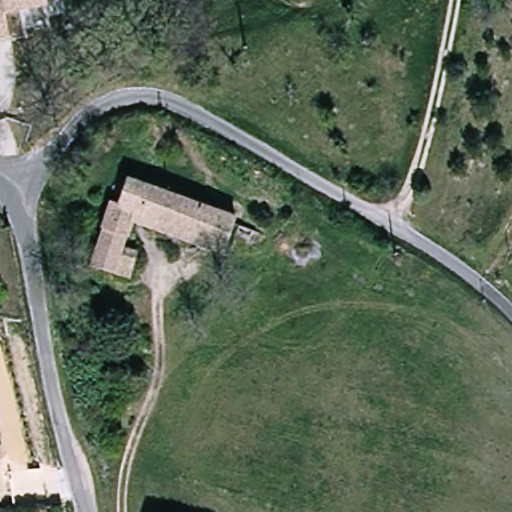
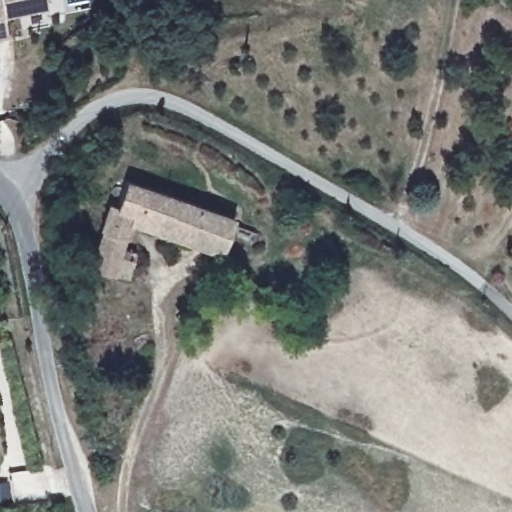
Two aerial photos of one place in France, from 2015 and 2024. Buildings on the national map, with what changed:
unchanged [(40,0),(5,10),(11,33),(0,36),(0,0),(40,0)]
unchanged [(137,226),(144,214),(123,205),(134,183),(243,222),(232,252),(137,226)]
unchanged [(88,265),(112,201),(123,205),(144,214),(137,226),(127,246),(142,250),(130,282),(88,265)]

